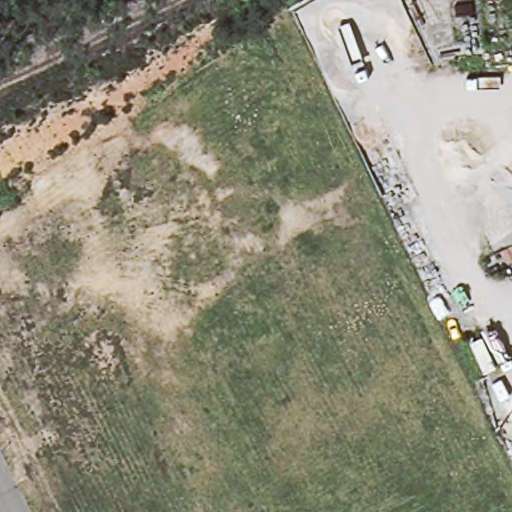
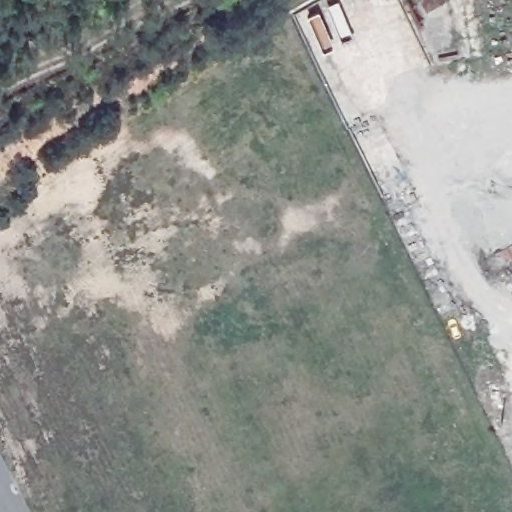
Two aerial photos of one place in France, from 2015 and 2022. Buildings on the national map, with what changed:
unchanged [(512,230),(512,249),(501,255),(492,240),(507,233),(512,230)]

